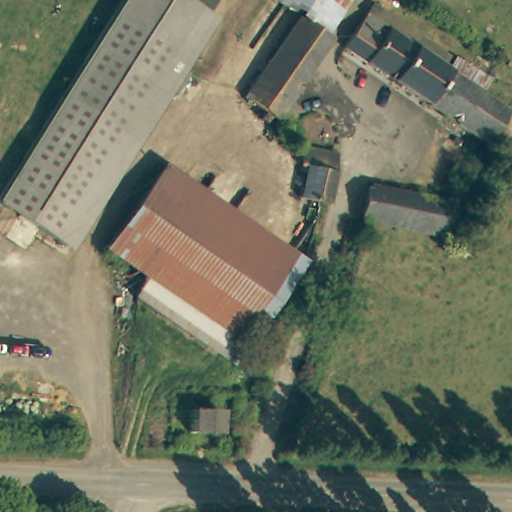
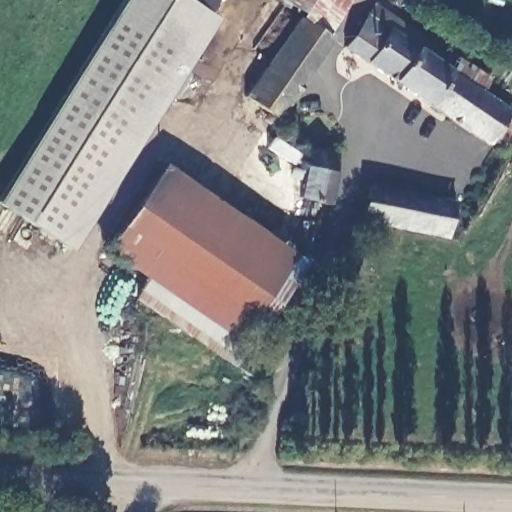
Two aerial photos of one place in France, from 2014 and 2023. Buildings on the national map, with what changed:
unchanged [(120,0),(172,0),(195,14),(170,57),(108,20),(120,0)]
unchanged [(195,14),(172,0),(203,0),(195,14)]
unchanged [(327,37),(303,20),(301,20),(265,71),(236,52),(270,0),(351,0),(327,37)]
unchanged [(195,14),(210,22),(180,74),(186,78),(173,100),(151,87),(170,57),(195,14)]
unchanged [(170,57),(151,87),(57,248),(0,214),(0,204),(106,23),(108,20),(170,57)]
unchanged [(276,120),(247,100),(303,20),(327,37),(332,40),(279,117),(276,120)]
unchanged [(512,117),(512,139),(502,131),(491,149),(346,52),(368,20),(391,39),(449,76),(457,63),(487,83),(479,96),(490,103),(512,117)]
unchanged [(291,255),(311,204),(300,201),(307,170),(302,169),(308,146),(343,156),(329,209),(322,206),(301,258),(291,255)]
unchanged [(116,235),(166,167),(291,258),(242,326),(153,262),(116,235)]
unchanged [(443,237),(421,233),(361,220),(368,186),(427,199),(450,204),(443,237)]
unchanged [(147,283),(153,262),(242,326),(231,342),(147,283)]

